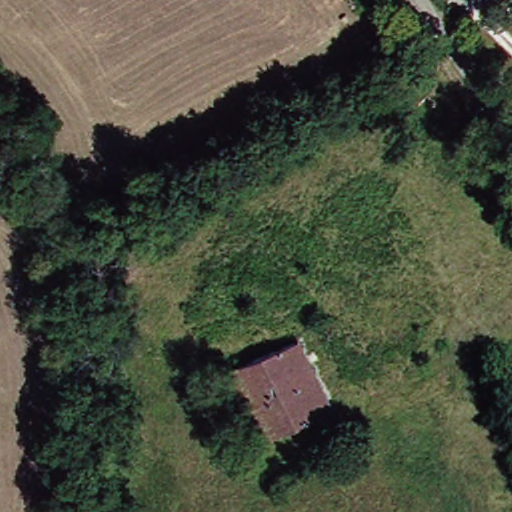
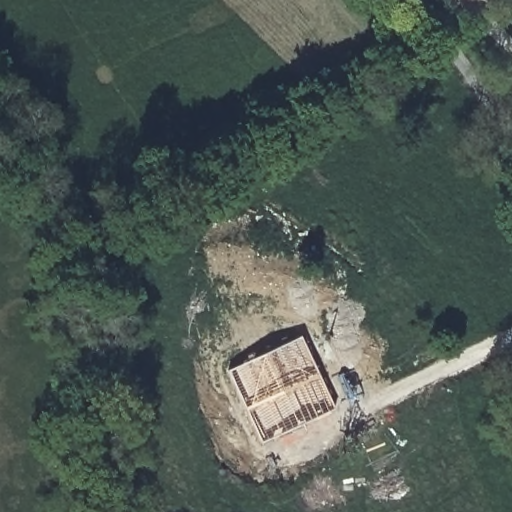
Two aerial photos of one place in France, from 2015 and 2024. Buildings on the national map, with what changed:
unchanged [(347,409),(274,442),(241,371),(313,338),(347,409)]

